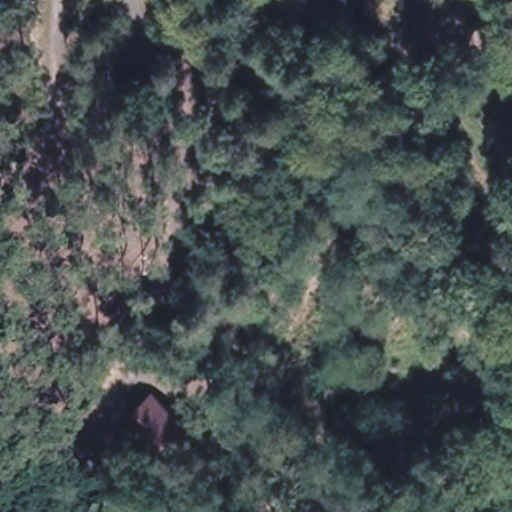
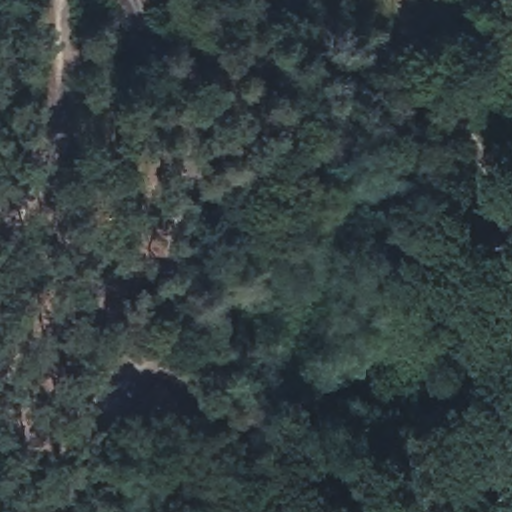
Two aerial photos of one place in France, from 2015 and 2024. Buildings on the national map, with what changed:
unchanged [(195,414),(166,442),(130,406),(161,377),(195,414)]

